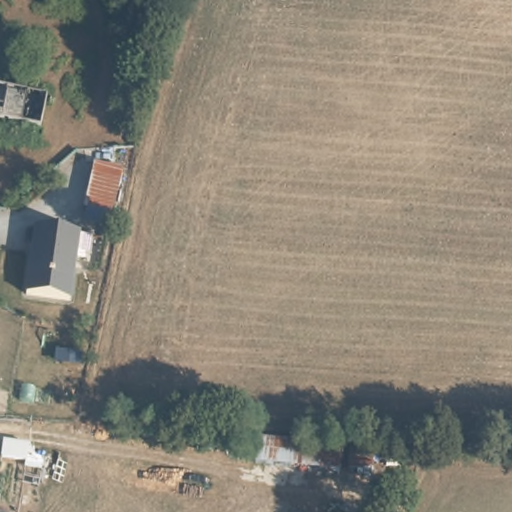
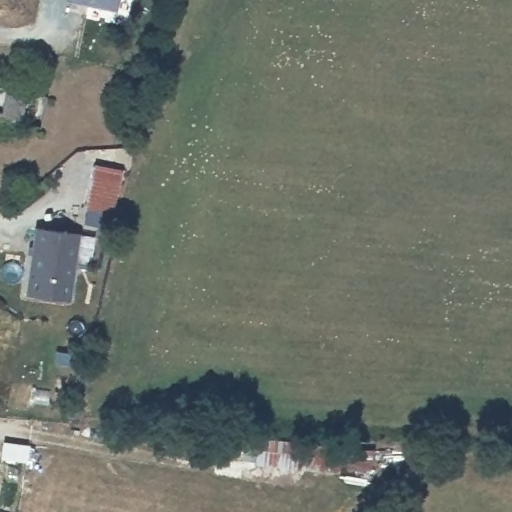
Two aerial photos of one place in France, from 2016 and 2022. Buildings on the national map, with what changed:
new [(69,0),(119,0),(116,11),(69,0)]
unchanged [(36,130),(0,125),(0,92),(42,101),(36,130)]
unchanged [(113,212),(81,205),(91,162),(123,169),(113,212)]
unchanged [(23,290),(37,224),(80,234),(66,300),(23,290)]

